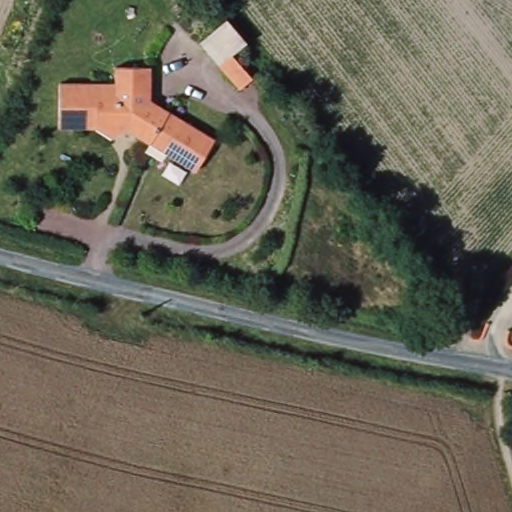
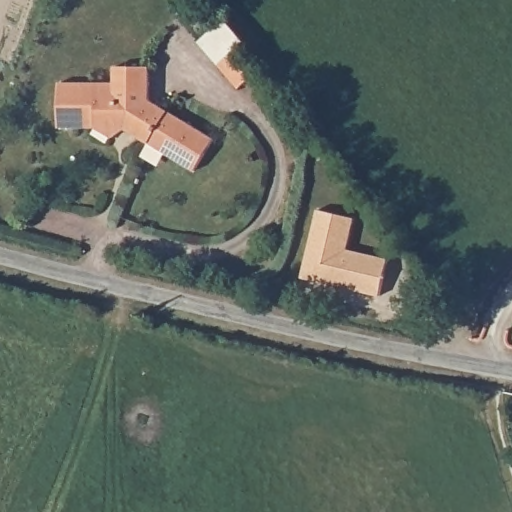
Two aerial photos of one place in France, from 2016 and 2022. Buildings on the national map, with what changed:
unchanged [(243,55),(260,81),(246,90),(230,64),(212,40),(239,22),(255,47),(243,55)]
unchanged [(147,101),(213,138),(195,170),(125,130),(110,139),(94,129),(57,129),(57,85),(113,85),(113,68),(147,68),(147,101)]
new [(390,260),(380,297),(302,280),(317,209),(355,219),(349,250),(390,260)]

